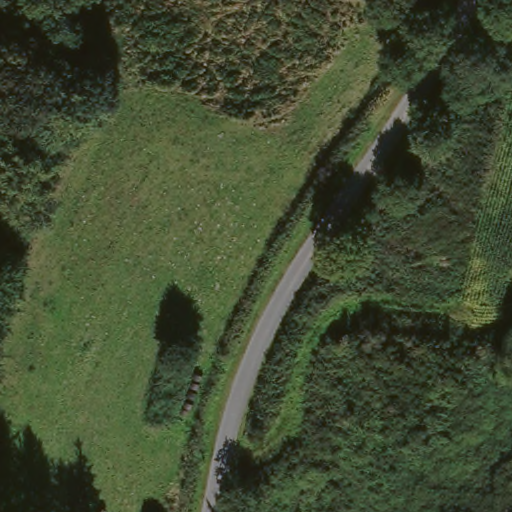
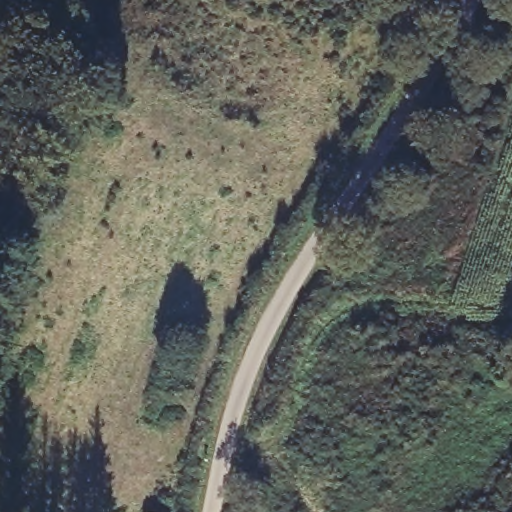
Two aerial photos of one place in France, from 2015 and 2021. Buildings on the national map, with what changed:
[]

